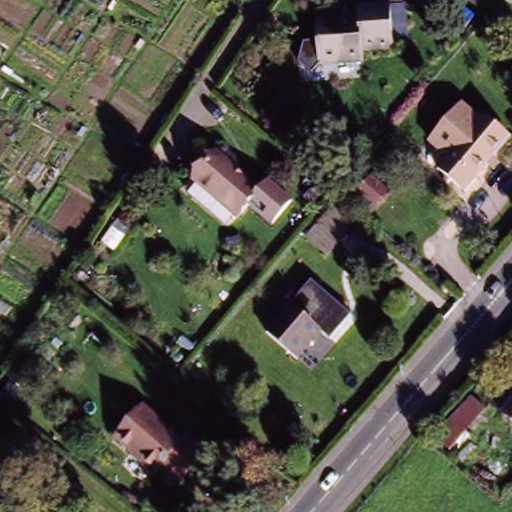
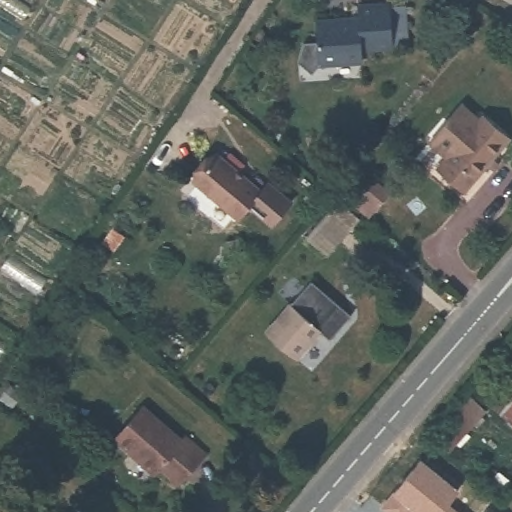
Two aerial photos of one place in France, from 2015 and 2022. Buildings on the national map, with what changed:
unchanged [(364,63),(321,66),(316,27),(360,22),(359,10),(394,6),(394,8),(409,6),(413,46),(397,48),(397,49),(363,53),(364,63)]
unchanged [(433,169),(478,119),(486,111),(512,134),(512,139),(508,144),(464,194),(433,169)]
unchanged [(238,217),(195,182),(218,154),(260,190),(238,217)]
unchanged [(369,185),(388,202),(374,217),(366,226),(348,209),(356,200),(369,185)]
unchanged [(336,208),(359,226),(333,260),(309,244),(336,208)]
unchanged [(294,362),(264,334),(291,306),(321,333),(294,362)]
unchanged [(0,395),(0,389),(8,380),(19,391),(9,403),(0,395)]
unchanged [(512,386),(512,428),(506,422),(492,410),(512,386)]
unchanged [(453,455),(438,443),(474,401),(488,413),(453,455)]
unchanged [(143,410),(181,446),(185,443),(207,463),(180,493),(161,474),(154,478),(115,443),(143,410)]
new [(420,457),(471,499),(460,512),(425,512),(414,503),(407,512),(393,512),(382,503),(420,457)]
new [(471,499),(486,512),(460,512),(471,499)]

